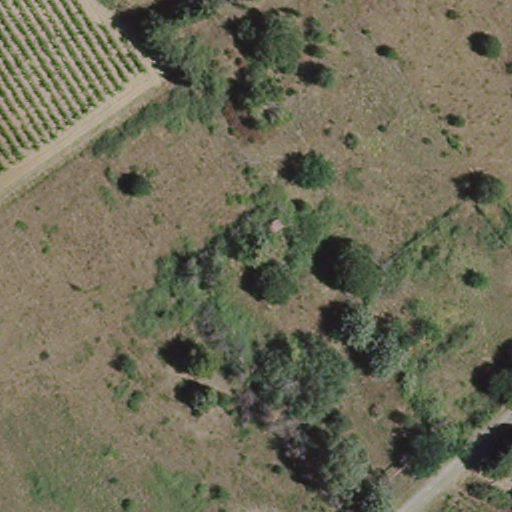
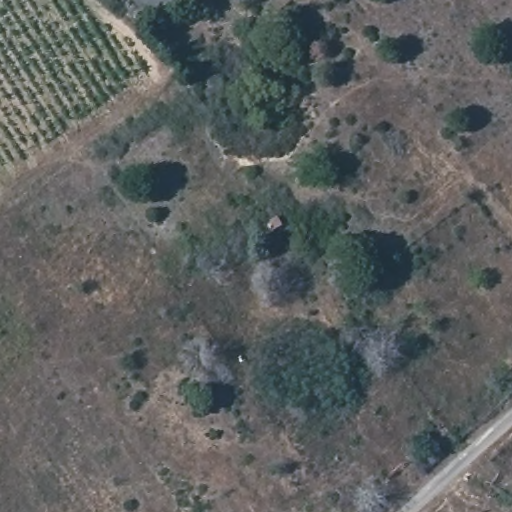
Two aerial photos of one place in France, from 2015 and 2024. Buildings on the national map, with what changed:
unchanged [(279,231),(271,219),(278,214),(287,223),(279,231)]

